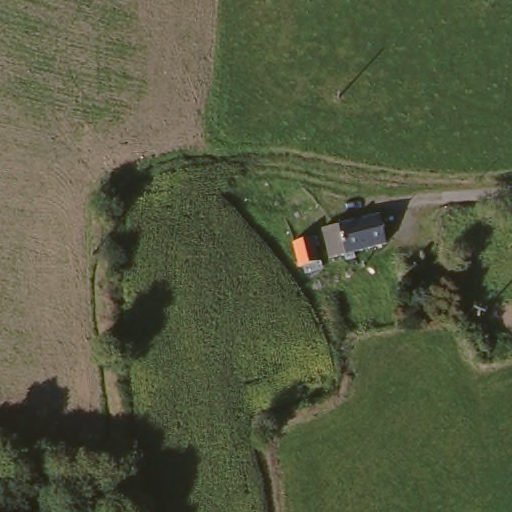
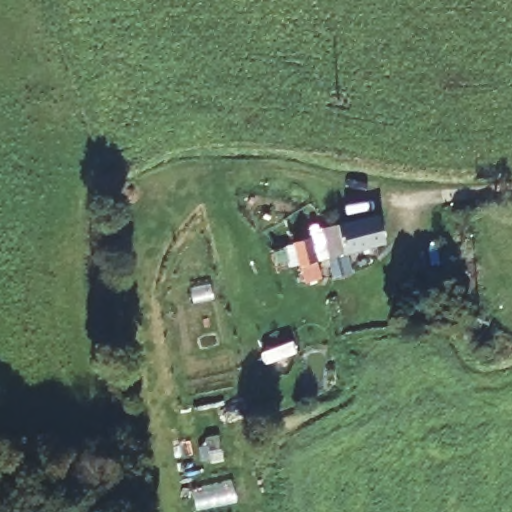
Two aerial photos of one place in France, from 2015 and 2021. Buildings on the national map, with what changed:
unchanged [(320,229),(337,224),(337,222),(377,212),(380,239),(343,247),(325,252),(320,229)]
unchanged [(313,256),(293,262),(287,242),(292,240),(307,236),(313,256)]

